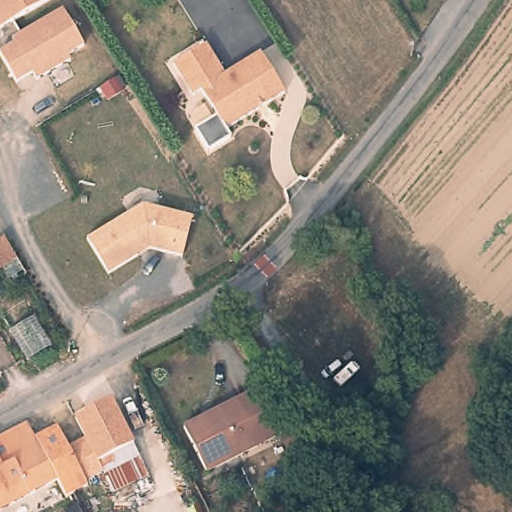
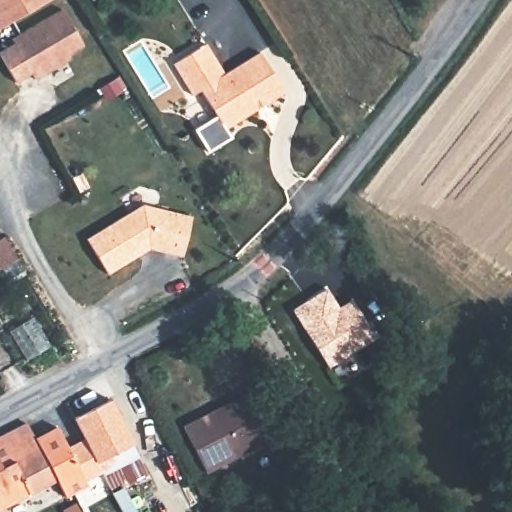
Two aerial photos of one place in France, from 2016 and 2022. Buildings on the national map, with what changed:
unchanged [(16,22),(0,31),(0,0),(53,0),(16,22)]
unchanged [(68,56),(71,61),(37,81),(32,75),(17,84),(0,55),(0,54),(17,44),(14,40),(23,35),(64,11),(85,47),(68,56)]
unchanged [(208,40),(227,71),(262,50),(287,89),(227,126),(232,135),(210,150),(196,127),(218,114),(202,89),(194,94),(175,61),(208,40)]
unchanged [(106,273),(86,237),(143,205),(192,219),(181,258),(149,249),(136,256),(106,273)]
unchanged [(4,236),(29,276),(10,284),(0,270),(0,238),(4,236)]
new [(328,286),(339,306),(353,296),(377,340),(327,368),(291,309),(328,286)]
unchanged [(53,341),(29,356),(14,327),(35,316),(53,341)]
unchanged [(201,420),(203,425),(237,408),(236,403),(252,395),(276,439),(205,475),(182,430),(201,420)]
unchanged [(81,466),(72,450),(90,440),(78,416),(115,399),(132,435),(136,444),(100,461),(103,467),(87,476),(90,483),(76,490),(68,495),(60,477),(81,466)]
unchanged [(17,460),(4,465),(0,457),(0,438),(30,423),(37,436),(60,477),(34,491),(17,460)]
unchanged [(37,436),(60,425),(72,450),(81,466),(60,477),(37,436)]
unchanged [(136,444),(132,435),(153,425),(172,465),(152,475),(115,492),(103,467),(100,461),(136,444)]
unchanged [(4,465),(17,460),(34,491),(0,509),(0,457),(4,465)]

